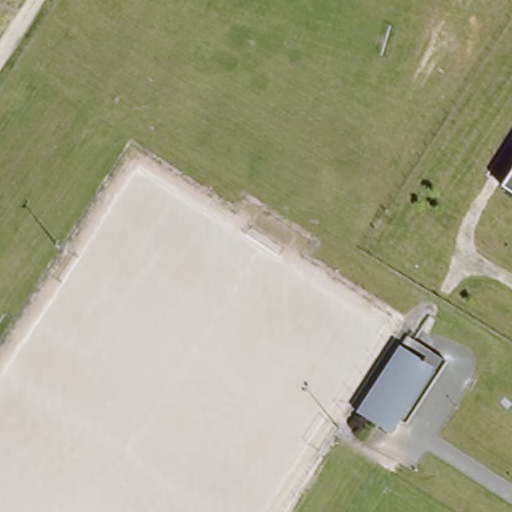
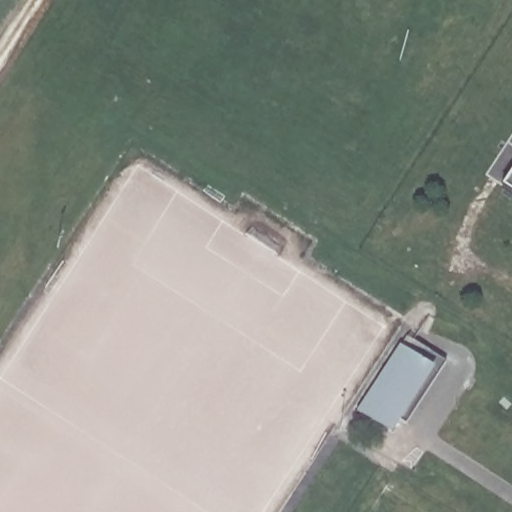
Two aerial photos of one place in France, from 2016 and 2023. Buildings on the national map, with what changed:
unchanged [(512,191),(505,186),(512,174),(512,191)]
unchanged [(439,364),(397,425),(387,418),(379,430),(349,410),(398,338),(439,364)]

